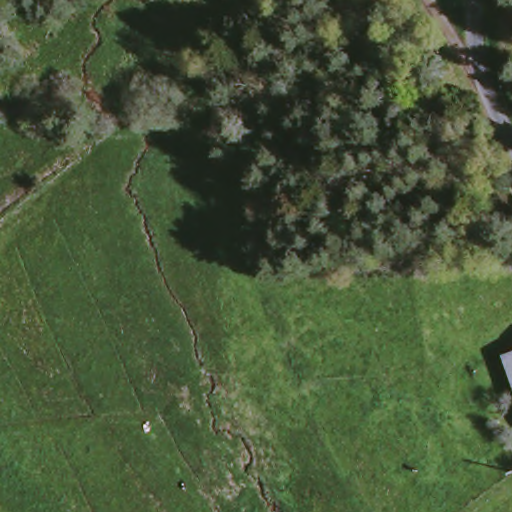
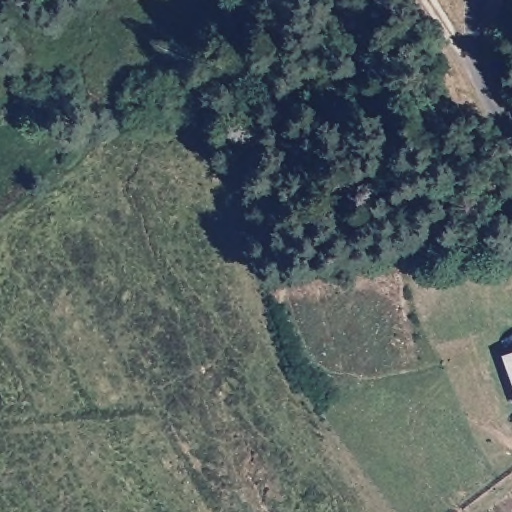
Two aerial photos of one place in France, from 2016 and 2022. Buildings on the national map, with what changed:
unchanged [(505,363),(512,359),(512,379),(505,363)]

